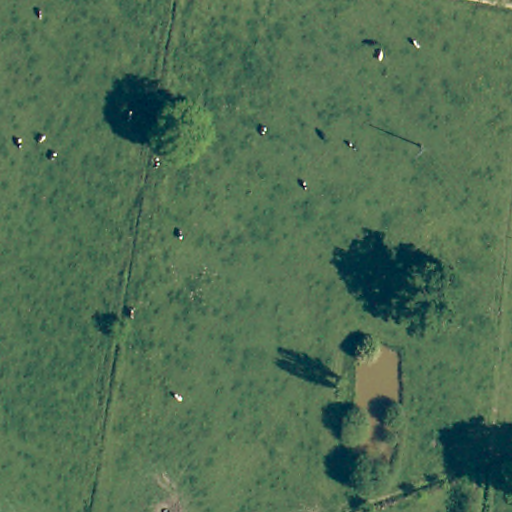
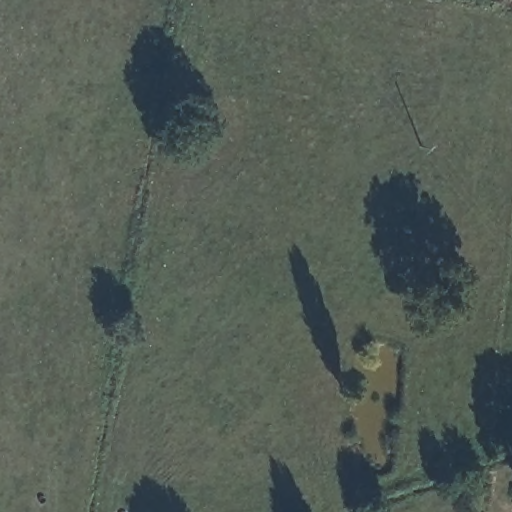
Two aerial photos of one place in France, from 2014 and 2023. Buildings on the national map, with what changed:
[]

